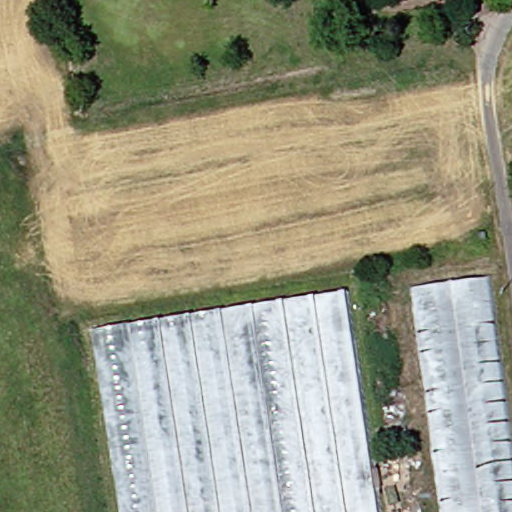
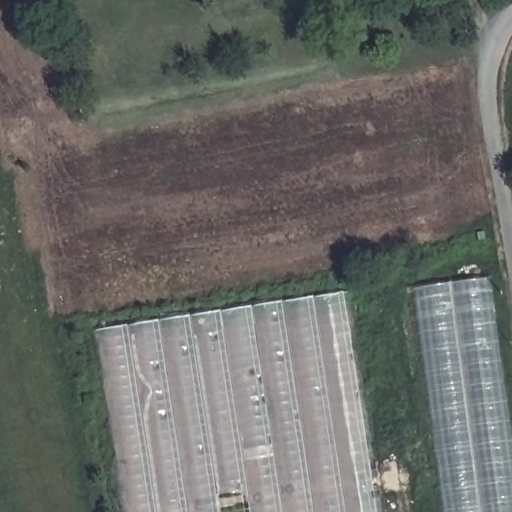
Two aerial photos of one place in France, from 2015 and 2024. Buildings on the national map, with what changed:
unchanged [(425,287),(496,278),(512,397),(512,512),(454,512),(425,287)]
unchanged [(106,333),(343,291),(383,512),(134,512),(106,333)]

